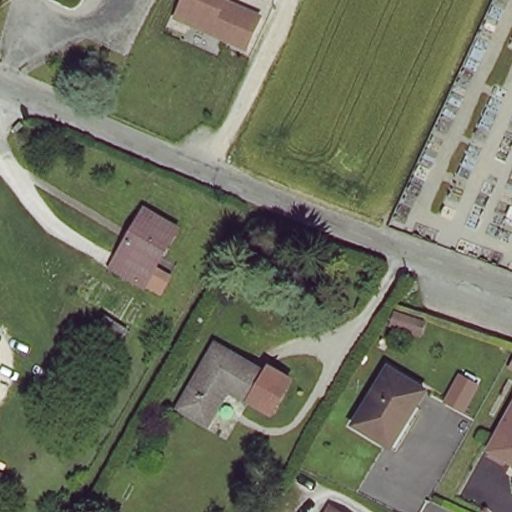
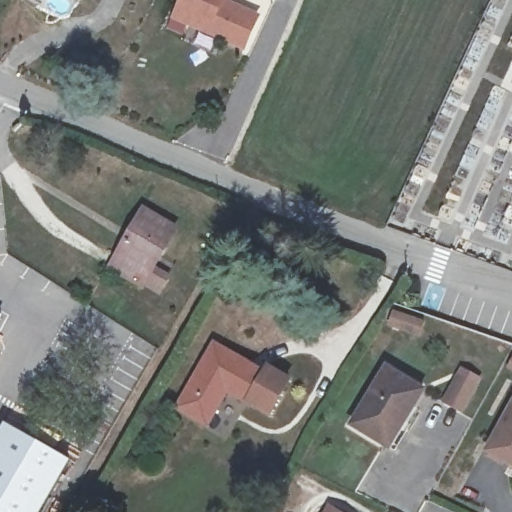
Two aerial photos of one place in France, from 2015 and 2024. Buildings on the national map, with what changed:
unchanged [(181,0),(222,0),(221,3),(256,19),(243,50),(187,25),(173,19),(176,9),(181,0)]
unchanged [(113,271),(144,216),(176,234),(150,276),(146,274),(139,287),(113,271)]
unchanged [(134,333),(125,344),(105,332),(113,319),(134,333)]
new [(0,328),(0,325),(1,326),(0,328)]
unchanged [(179,409),(218,347),(267,376),(249,404),(230,392),(208,426),(179,409)]
unchanged [(392,449),(381,443),(349,424),(383,368),(420,389),(401,421),(407,424),(392,449)]
unchanged [(454,376),(469,384),(455,409),(439,401),(454,376)]
unchanged [(489,451),(512,409),(512,463),(489,451)]
new [(48,512),(0,512),(0,439),(3,434),(71,473),(48,512)]
unchanged [(326,504),(339,512),(321,512),(326,504)]

